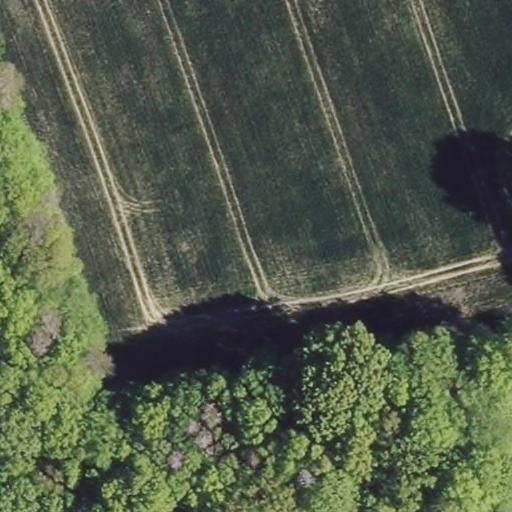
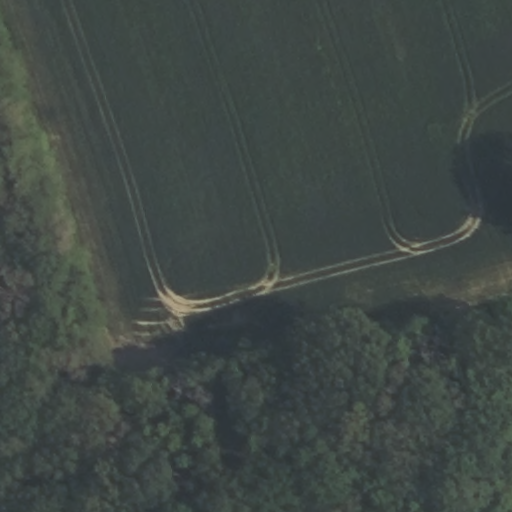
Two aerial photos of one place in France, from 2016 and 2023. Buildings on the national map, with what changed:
unchanged [(501,429),(512,422),(512,449),(501,429)]

